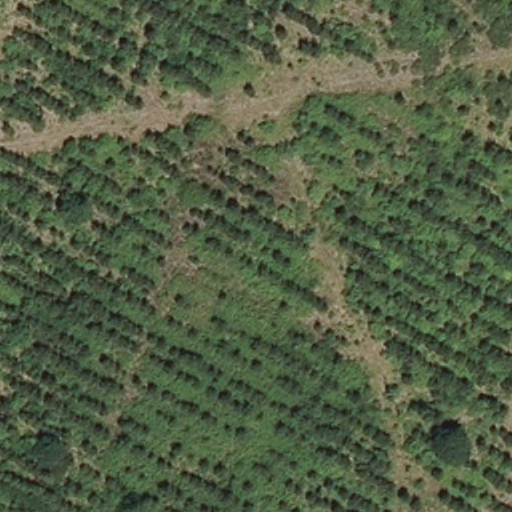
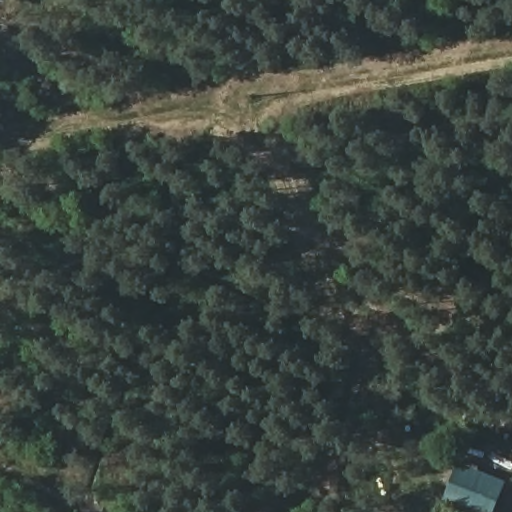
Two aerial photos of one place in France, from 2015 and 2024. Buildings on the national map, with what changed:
new [(507,483),(495,512),(468,512),(444,504),(460,464),(507,483)]

